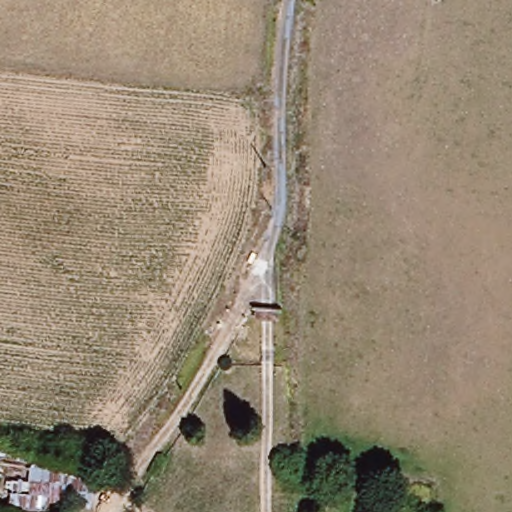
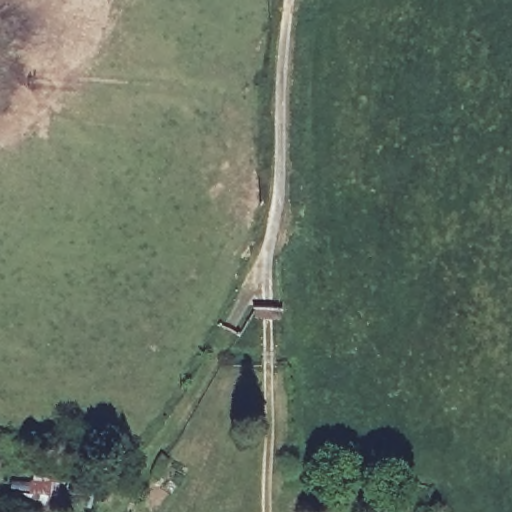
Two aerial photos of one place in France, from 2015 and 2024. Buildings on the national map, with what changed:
unchanged [(5,463),(5,475),(67,487),(61,512),(0,512),(0,462),(5,463)]

